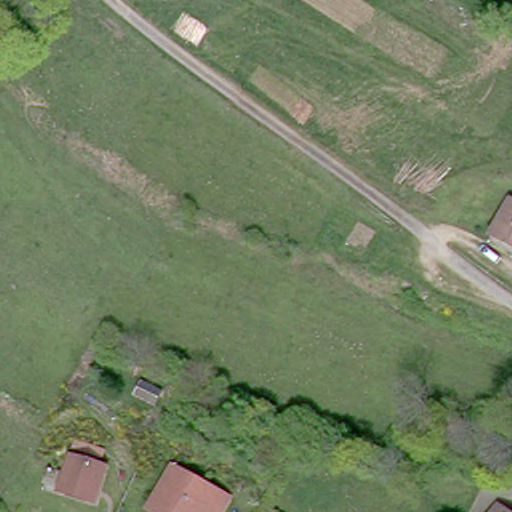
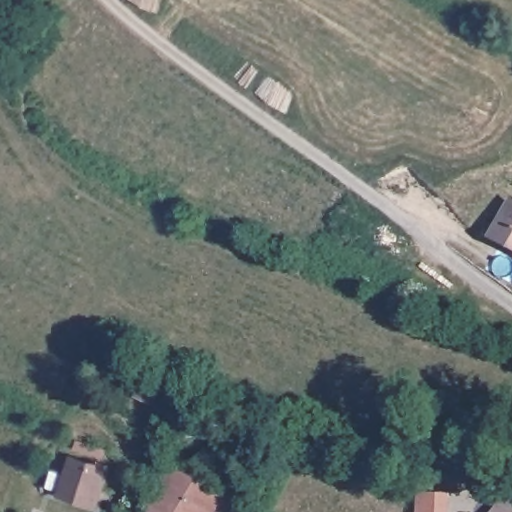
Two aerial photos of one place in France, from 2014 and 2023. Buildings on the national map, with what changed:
unchanged [(512,207),(512,253),(492,241),(512,207)]
unchanged [(59,491),(69,459),(105,469),(94,502),(59,491)]
unchanged [(146,505),(151,498),(169,466),(226,496),(218,512),(159,512),(146,505)]
new [(419,489),(447,492),(446,506),(445,512),(416,512),(417,504),(419,489)]

